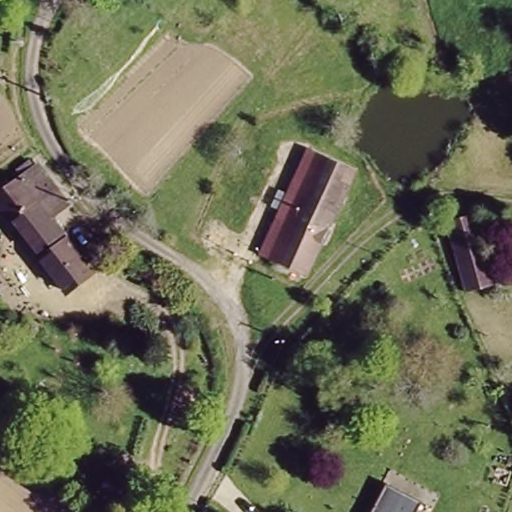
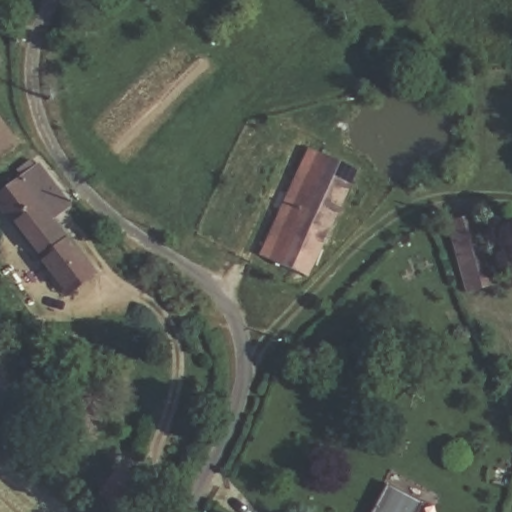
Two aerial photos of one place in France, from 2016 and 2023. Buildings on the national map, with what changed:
unchanged [(253,262),(262,242),(266,243),(273,227),(310,140),(358,160),(311,274),(309,276),(305,279),(253,262)]
unchanged [(0,193),(38,165),(68,205),(51,218),(92,272),(68,290),(0,201),(0,193)]
unchanged [(442,227),(476,215),(499,281),(462,296),(442,227)]
unchanged [(146,442),(189,468),(176,491),(133,466),(146,442)]
unchanged [(425,500),(419,512),(372,512),(388,483),(425,500)]

